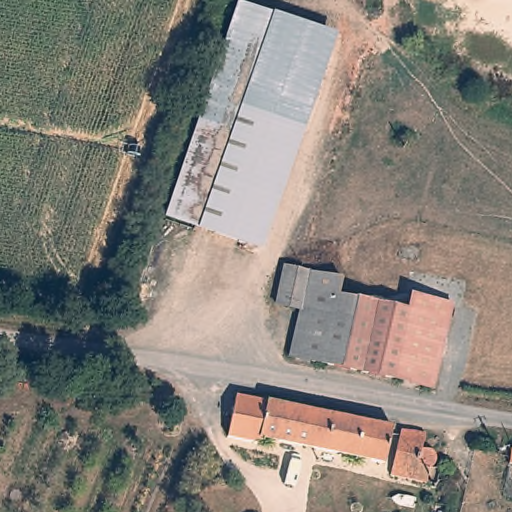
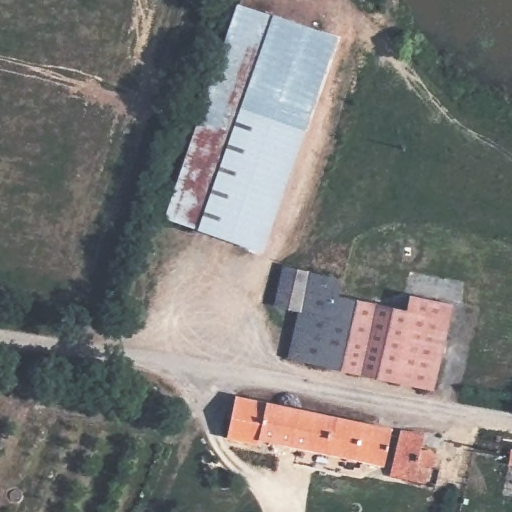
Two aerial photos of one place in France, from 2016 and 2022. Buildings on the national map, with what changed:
unchanged [(261,251),(163,217),(236,2),(335,34),(261,251)]
unchanged [(436,392),(291,362),(303,317),(275,311),(280,291),(283,277),(341,289),(339,303),(407,316),(410,302),(452,312),(440,376),(436,392)]
unchanged [(224,431),(231,401),(321,418),(314,451),(224,431)]
unchanged [(314,451),(321,418),(382,432),(375,465),(314,451)]
unchanged [(430,466),(427,468),(424,469),(419,468),(418,471),(428,472),(425,486),(384,477),(393,433),(422,438),(419,453),(423,453),(428,455),(431,457),(431,462),(430,466)]
unchanged [(506,468),(509,443),(512,444),(512,469),(506,468)]

